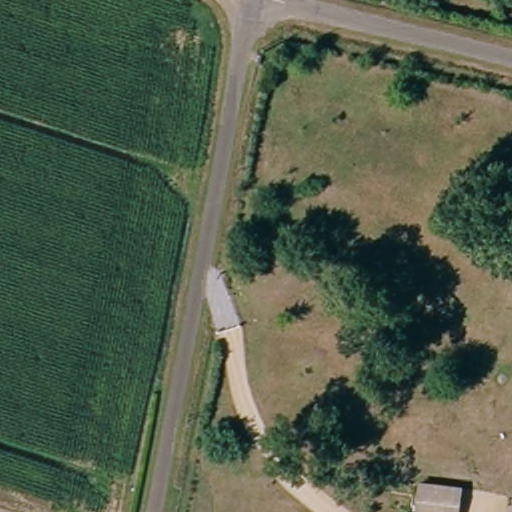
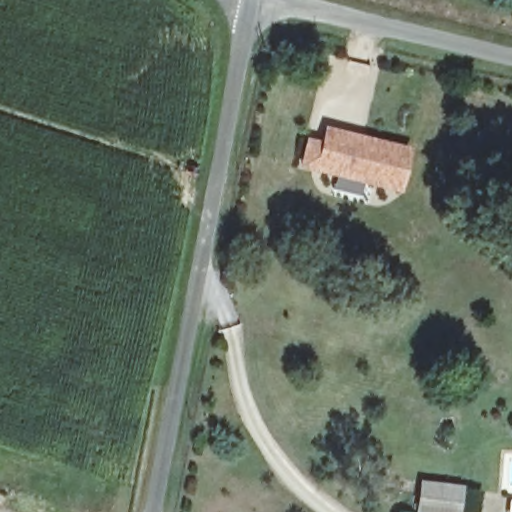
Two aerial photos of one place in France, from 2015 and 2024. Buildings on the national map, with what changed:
new [(299,165),(306,135),(320,139),(324,124),(412,146),(402,192),(299,165)]
unchanged [(459,512),(423,512),(426,483),(463,489),(459,512)]

